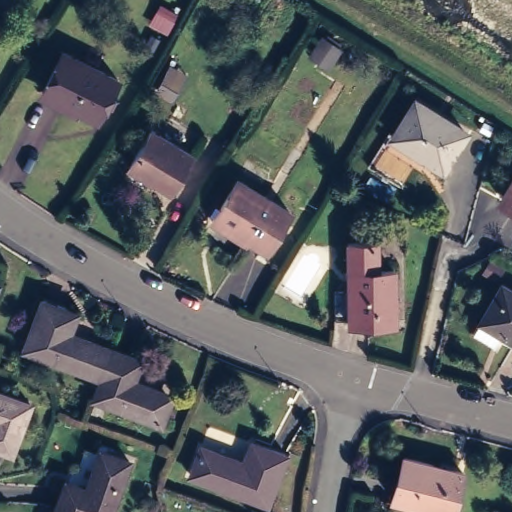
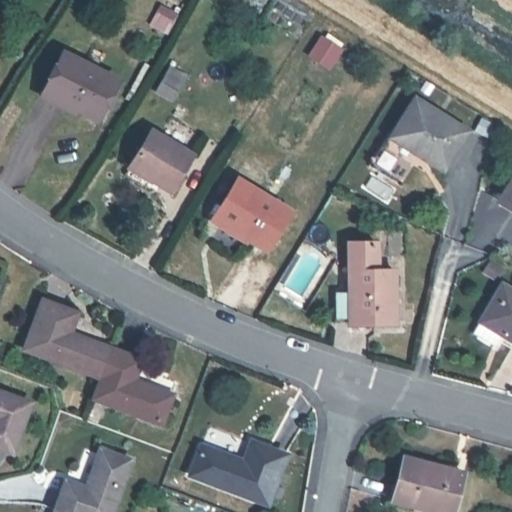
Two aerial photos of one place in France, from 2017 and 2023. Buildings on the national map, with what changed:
unchanged [(62,57),(117,85),(97,125),(42,97),(62,57)]
unchanged [(465,136),(442,173),(392,141),(415,105),(465,136)]
unchanged [(192,160),(170,196),(129,171),(151,135),(192,160)]
unchanged [(497,198),(512,174),(512,207),(497,198)]
unchanged [(210,228),(212,224),(209,222),(232,184),(285,216),(261,254),(243,243),(240,247),(210,228)]
unchanged [(510,211),(512,207),(512,213),(510,211)]
unchanged [(349,270),(349,243),(376,242),(376,270),(393,270),(394,324),(349,324),(349,319),(335,319),(334,291),(349,290),(349,270)]
unchanged [(501,289),(512,296),(512,347),(499,338),(490,353),(470,341),(479,326),(501,289)]
unchanged [(72,317),(62,341),(105,357),(97,380),(96,383),(19,354),(37,304),(72,317)]
unchanged [(96,383),(97,380),(105,357),(107,353),(135,364),(127,388),(166,402),(157,427),(89,403),(96,383)]
unchanged [(9,453),(7,457),(0,454),(0,398),(25,407),(17,430),(9,453)]
unchanged [(267,503),(190,474),(200,448),(242,465),(252,441),(285,454),(267,503)]
unchanged [(95,494),(109,455),(135,464),(117,512),(61,512),(70,485),(95,494)]
unchanged [(449,512),(412,512),(387,505),(399,462),(457,478),(449,512)]

